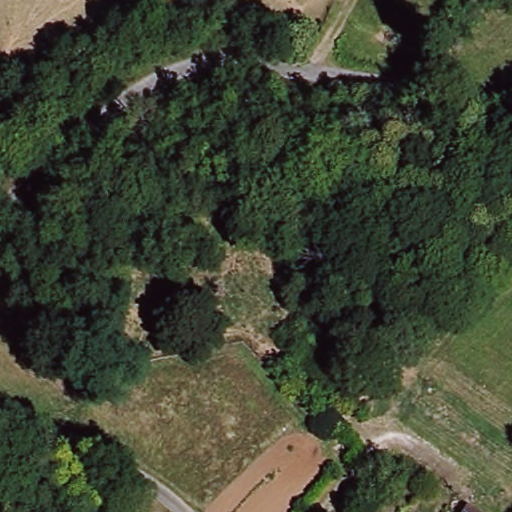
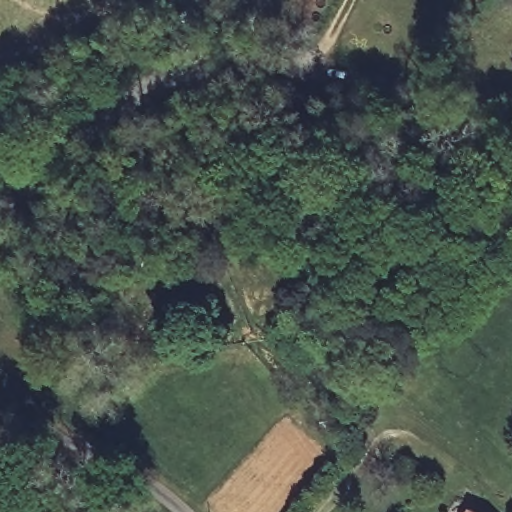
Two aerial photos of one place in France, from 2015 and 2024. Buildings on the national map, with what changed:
unchanged [(472,510),(475,512),(471,512),(472,510)]

